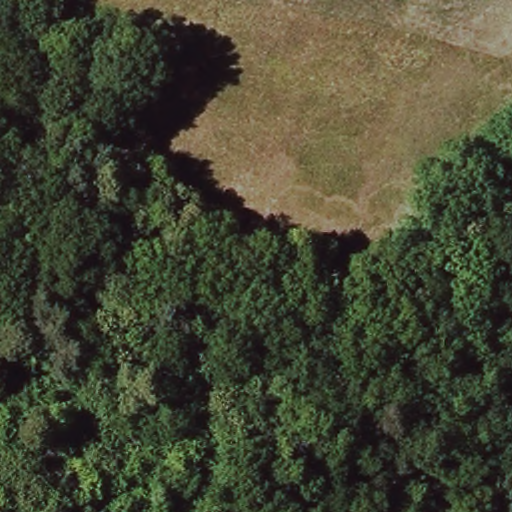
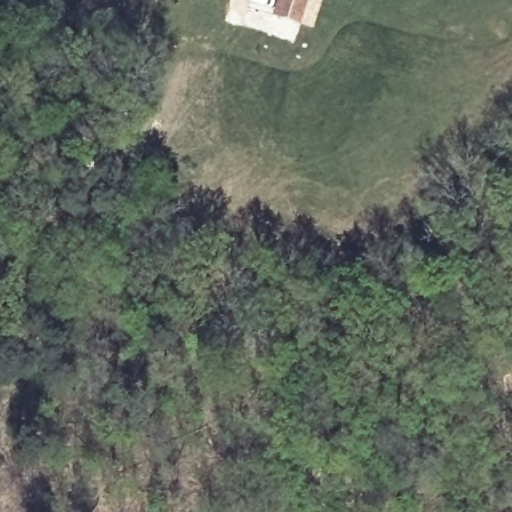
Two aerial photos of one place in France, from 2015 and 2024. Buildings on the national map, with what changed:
new [(322,0),(312,28),(270,14),(275,0),(322,0)]

